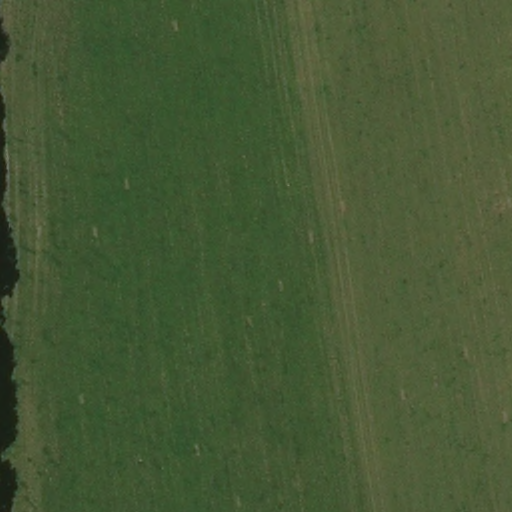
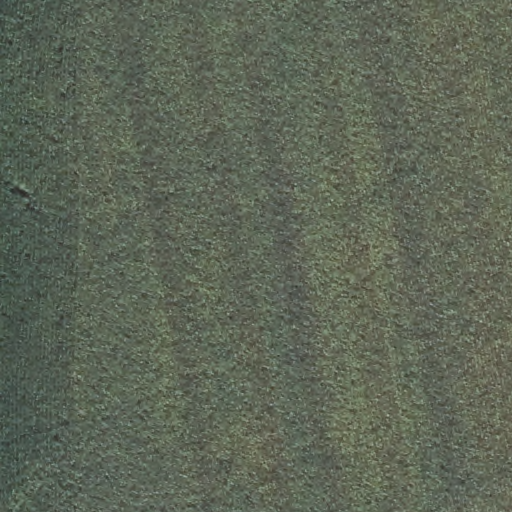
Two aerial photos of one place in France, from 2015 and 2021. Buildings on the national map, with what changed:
[]

